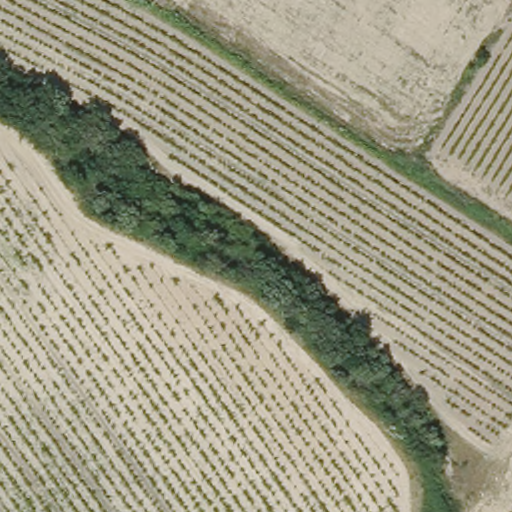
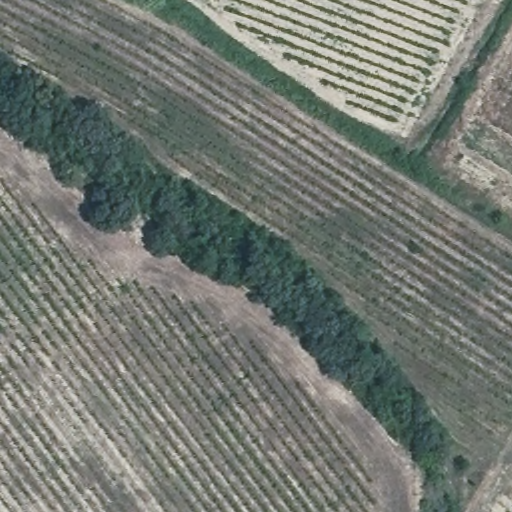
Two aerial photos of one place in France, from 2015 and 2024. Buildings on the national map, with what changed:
[]

